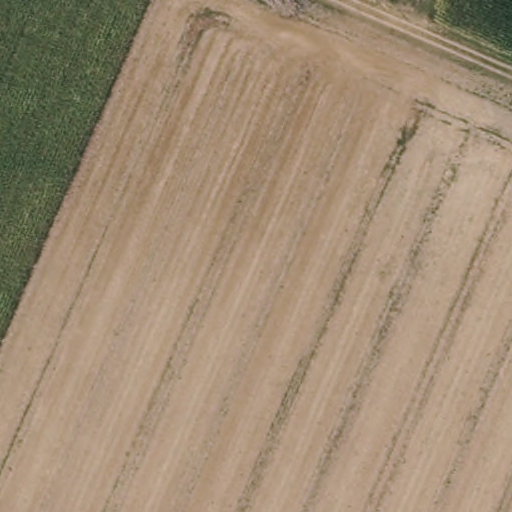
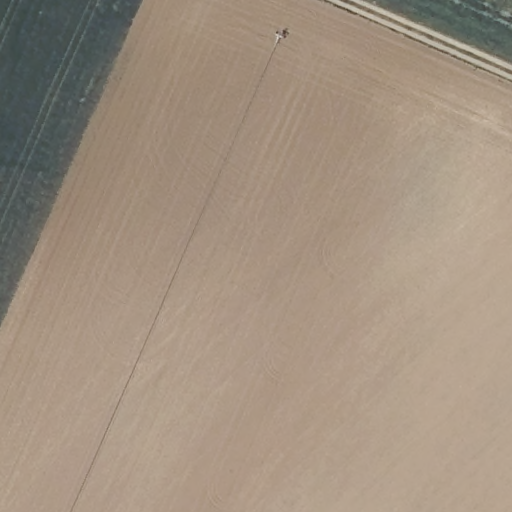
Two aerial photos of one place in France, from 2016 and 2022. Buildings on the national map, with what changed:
[]

